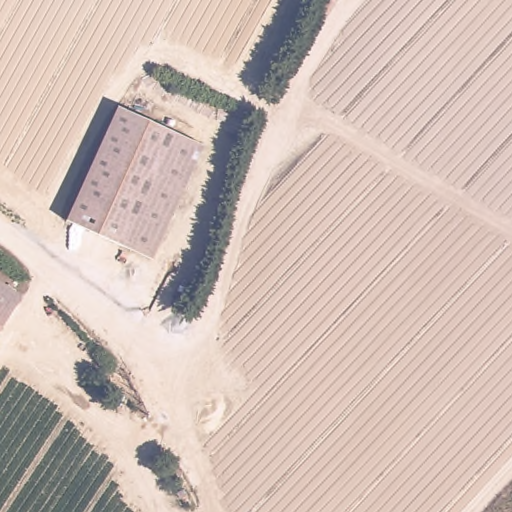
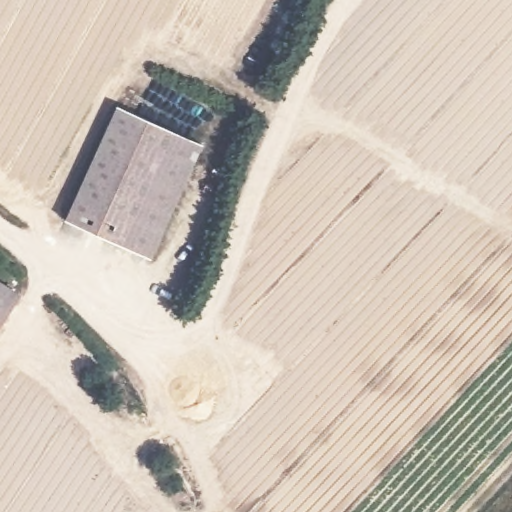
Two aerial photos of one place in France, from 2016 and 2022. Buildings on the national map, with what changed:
unchanged [(126,247),(66,218),(118,106),(179,132),(126,247)]
unchanged [(202,143),(149,256),(126,247),(179,132),(202,143)]
unchanged [(15,291),(0,316),(0,281),(15,291)]

